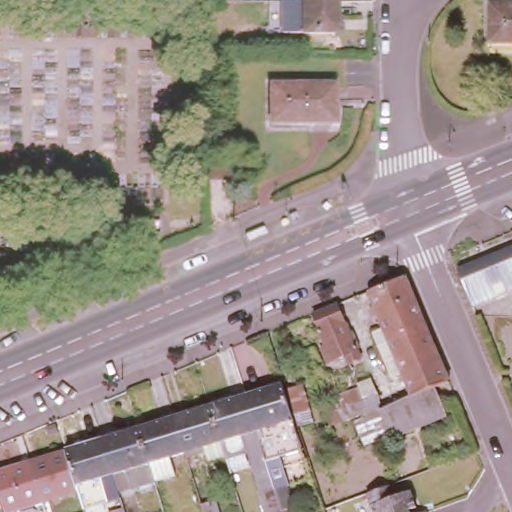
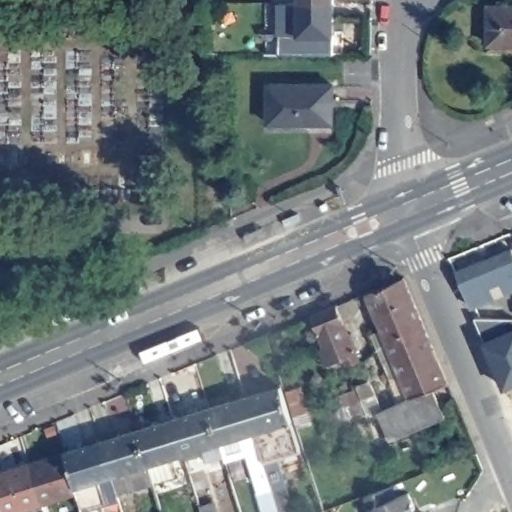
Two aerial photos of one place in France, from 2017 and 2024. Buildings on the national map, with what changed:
unchanged [(334,1),(300,1),(300,0),(334,0),(334,1)]
unchanged [(334,32),(301,33),(300,1),(334,1),(334,32)]
unchanged [(490,5),(512,5),(512,43),(491,43),(490,5)]
unchanged [(334,84),(334,122),(269,122),(269,84),(334,84)]
unchanged [(228,179),(209,180),(209,161),(228,160),(228,179)]
unchanged [(15,252),(32,251),(33,272),(17,273),(0,275),(0,252),(15,252)]
unchanged [(464,273),(512,254),(512,295),(478,309),(464,273)]
unchanged [(366,294),(404,279),(448,386),(436,391),(411,400),(366,294)]
unchanged [(356,351),(361,350),(366,362),(351,368),(348,360),(331,366),(326,351),(330,349),(317,317),(340,307),(356,351)]
new [(483,339),(484,339),(475,317),(512,318),(512,387),(504,390),(483,339)]
unchanged [(373,381),(384,410),(377,413),(388,441),(366,450),(355,423),(333,429),(323,400),(373,381)]
unchanged [(303,448),(281,455),(298,512),(281,512),(245,393),(281,382),(303,448)]
unchanged [(447,418),(388,441),(377,413),(384,410),(411,400),(436,391),(447,418)]
unchanged [(225,459),(223,454),(208,404),(245,393),(281,512),(266,512),(246,452),(225,459)]
unchanged [(201,461),(197,447),(184,451),(173,415),(208,404),(223,454),(201,461)]
unchanged [(148,462),(138,426),(173,415),(184,451),(148,462)]
unchanged [(133,487),(128,468),(113,473),(101,437),(138,426),(148,462),(154,480),(133,487)]
unchanged [(101,487),(98,477),(76,484),(65,449),(101,437),(113,473),(115,483),(101,487)]
unchanged [(65,449),(76,484),(78,490),(42,501),(29,460),(65,449)]
unchanged [(42,501),(7,512),(5,512),(0,494),(0,469),(29,460),(42,501)]
unchanged [(392,485),(396,496),(410,491),(416,507),(409,510),(409,512),(373,512),(366,494),(392,485)]
unchanged [(213,499),(217,512),(203,512),(200,503),(213,499)]
unchanged [(109,512),(107,505),(121,501),(124,512),(109,512)]
unchanged [(425,512),(424,512),(425,511),(425,512)]

